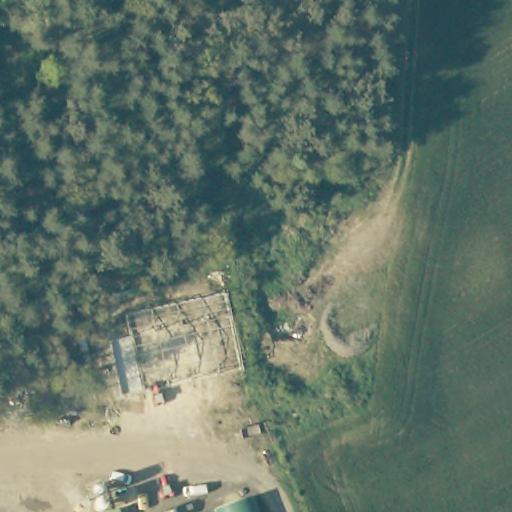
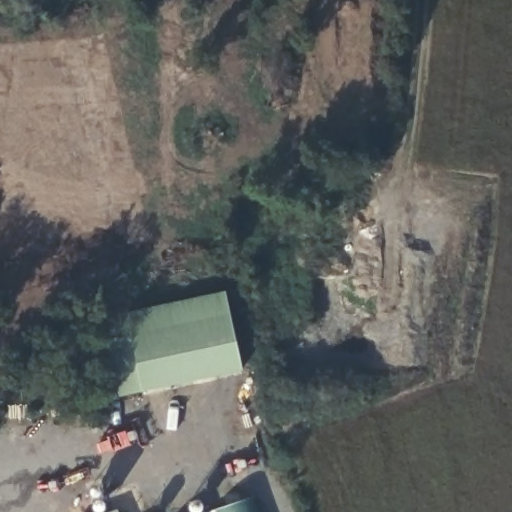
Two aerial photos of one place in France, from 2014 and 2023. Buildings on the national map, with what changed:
new [(142,392),(117,399),(104,342),(131,336),(125,311),(224,291),(241,370),(142,392)]
unchanged [(214,512),(252,499),(257,512),(214,512)]

